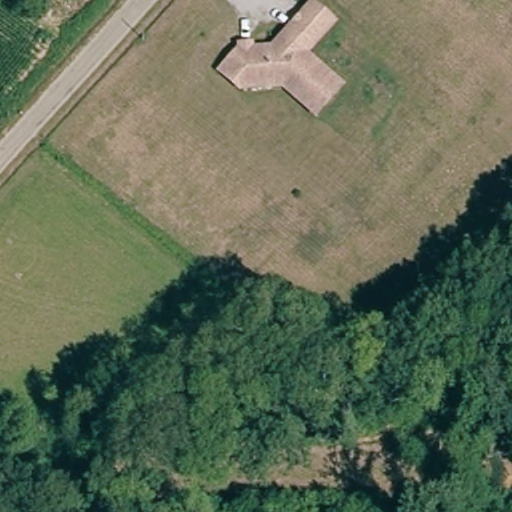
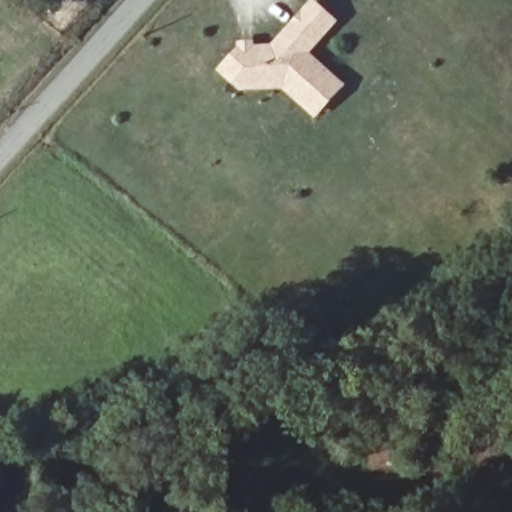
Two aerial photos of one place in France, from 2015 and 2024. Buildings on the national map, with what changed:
unchanged [(235,59),(247,46),(250,45),(249,41),(260,40),(260,45),(281,45),(322,0),(323,0),(343,19),(314,50),(350,82),(324,111),(292,81),(249,84),(236,71),(235,59)]

